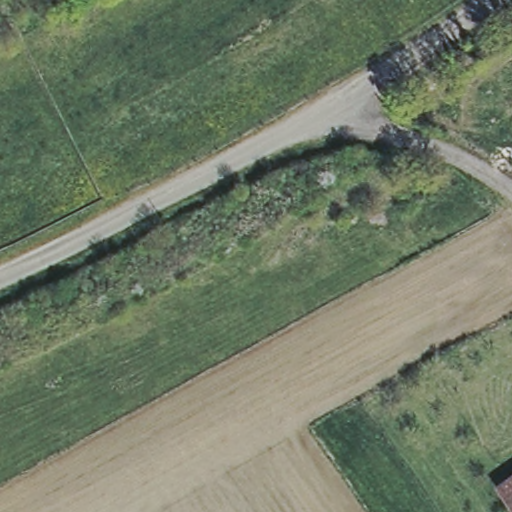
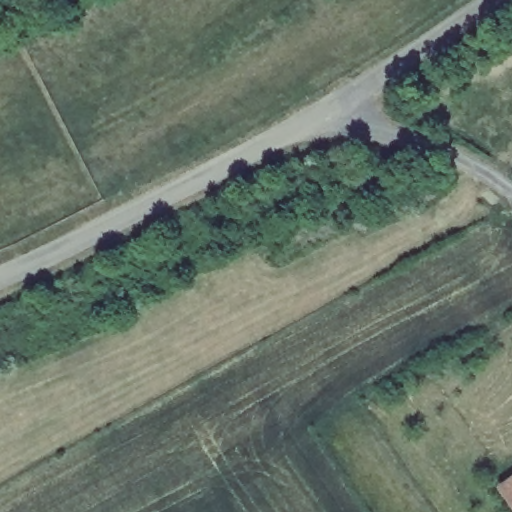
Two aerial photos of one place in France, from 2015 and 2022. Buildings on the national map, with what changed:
unchanged [(500,482),(512,477),(512,508),(500,482)]

